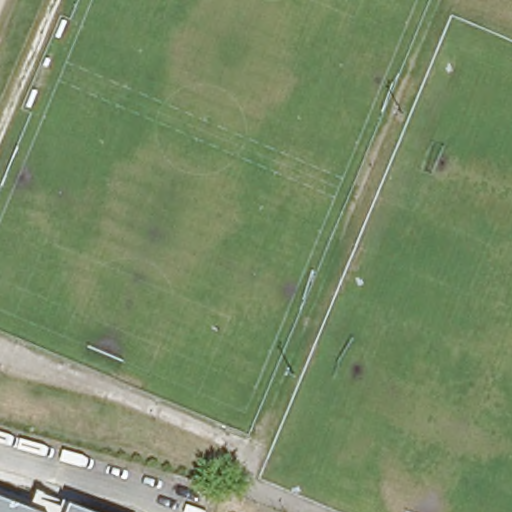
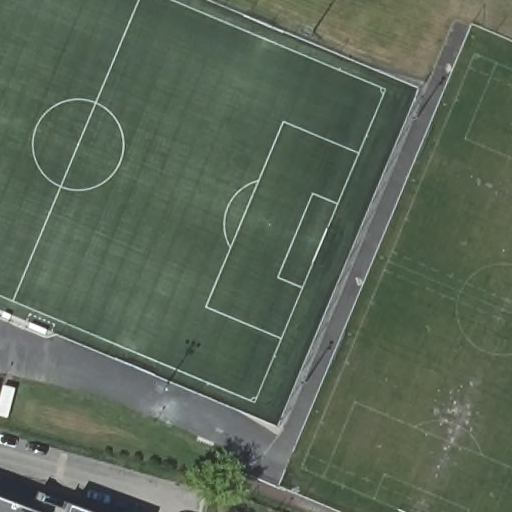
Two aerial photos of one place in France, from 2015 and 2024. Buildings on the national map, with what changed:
unchanged [(0,489),(39,503),(42,494),(92,512),(0,512),(0,489)]

